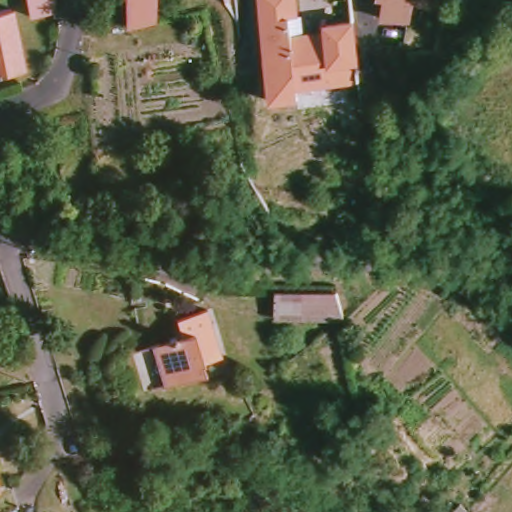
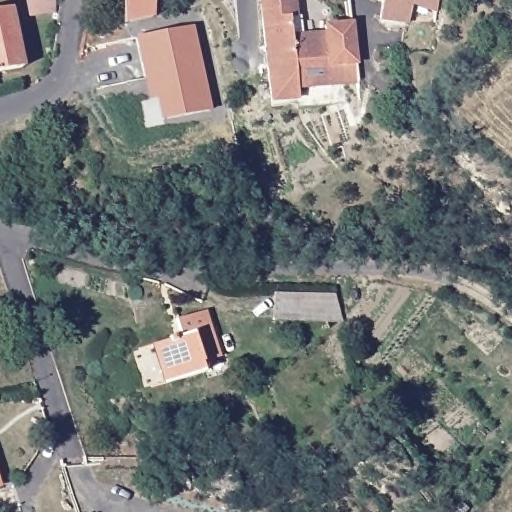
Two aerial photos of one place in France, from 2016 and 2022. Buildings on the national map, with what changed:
unchanged [(54,13),(29,18),(26,0),(54,0),(54,13)]
unchanged [(123,0),(154,0),(152,17),(121,24),(123,0)]
unchanged [(300,17),(290,18),(293,36),(325,26),(355,23),(360,68),(360,86),(301,93),(301,103),(271,106),(259,0),(299,0),(300,17)]
unchanged [(408,18),(382,16),(385,0),(412,0),(408,18)]
unchanged [(436,6),(416,0),(437,0),(436,6)]
unchanged [(21,67),(0,71),(0,12),(10,10),(21,67)]
new [(217,110),(144,129),(136,99),(147,96),(130,36),(195,21),(217,110)]
unchanged [(343,323),(339,322),(275,320),(276,294),(336,296),(343,323)]
unchanged [(167,336),(166,333),(172,332),(174,336),(180,334),(176,316),(205,308),(218,354),(200,359),(202,369),(166,379),(155,340),(167,336)]

